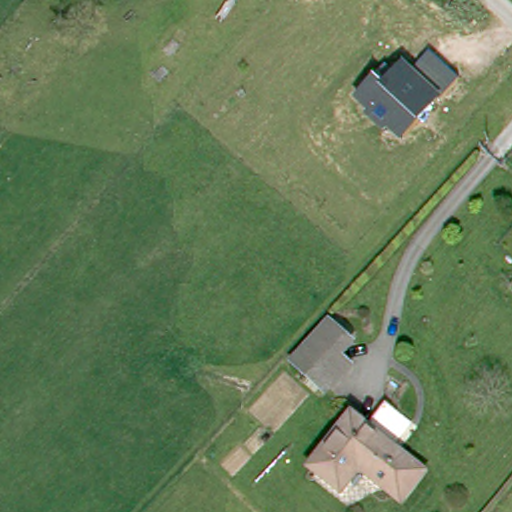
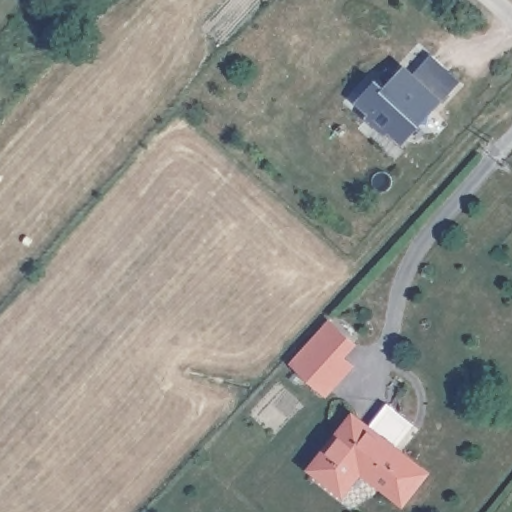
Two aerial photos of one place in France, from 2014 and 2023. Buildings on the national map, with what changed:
unchanged [(443,99),(404,142),(393,131),(384,134),(366,116),(369,113),(356,99),(385,67),(398,74),(404,64),(412,71),(429,55),(459,79),(443,99)]
unchanged [(323,391),(297,371),(329,327),(353,345),(341,359),(353,368),(333,397),(323,391)]
unchanged [(359,428),(377,402),(405,422),(388,448),(423,475),(404,502),(356,468),(341,493),(311,473),(346,420),(359,428)]

